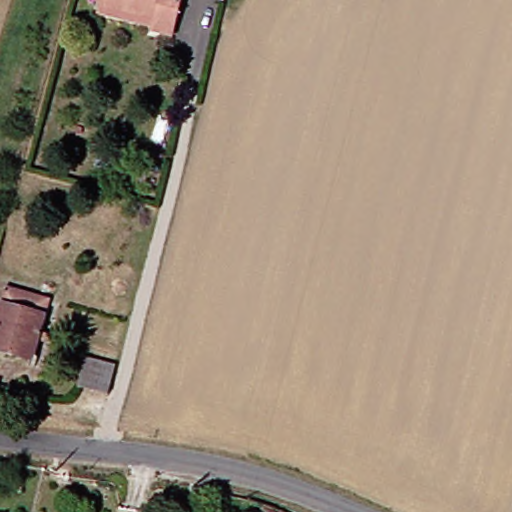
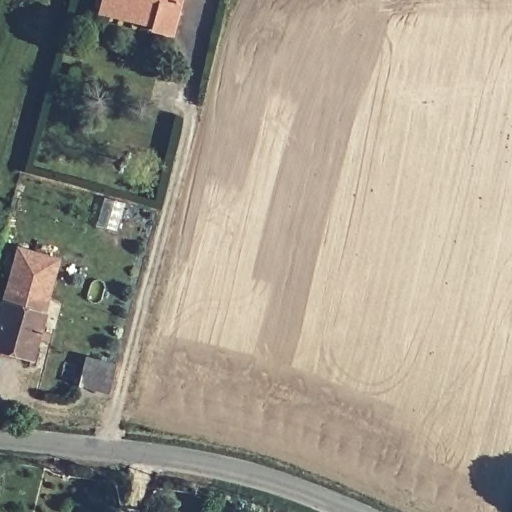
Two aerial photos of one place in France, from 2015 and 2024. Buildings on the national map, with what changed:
unchanged [(109,6),(110,0),(187,0),(177,36),(159,32),(160,28),(107,14),(109,6)]
new [(9,286),(21,246),(62,258),(51,298),(9,286)]
unchanged [(34,357),(0,347),(0,318),(9,286),(51,298),(34,357)]
unchanged [(117,364),(111,391),(82,383),(89,356),(117,364)]

